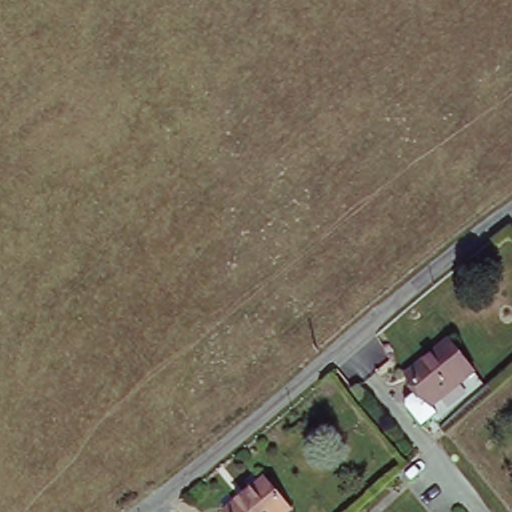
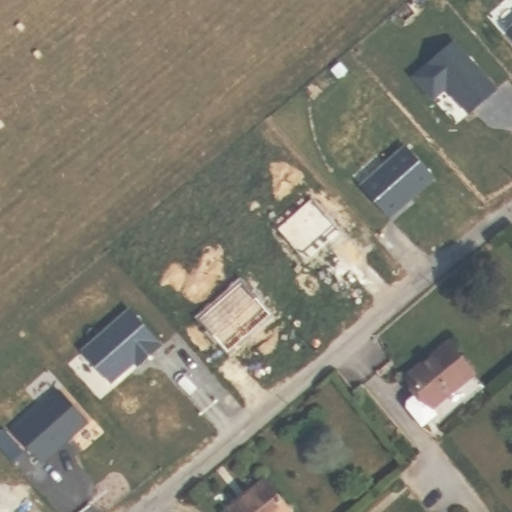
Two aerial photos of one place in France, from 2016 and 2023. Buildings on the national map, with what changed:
new [(512,22),(512,44),(501,32),(512,22)]
new [(447,44),(488,91),(462,114),(440,89),(427,100),(407,78),(447,44)]
new [(399,148),(427,179),(382,219),(354,187),(399,148)]
new [(153,347),(130,368),(125,362),(120,366),(120,370),(105,384),(101,383),(74,352),(121,311),(153,347)]
unchanged [(455,345),(477,377),(432,408),(436,414),(420,425),(407,407),(408,400),(421,392),(410,376),(455,345)]
new [(50,392),(80,424),(34,465),(5,432),(50,392)]
unchanged [(512,406),(510,404),(512,402),(512,406)]
unchanged [(292,512),(230,512),(267,481),(292,512)]

